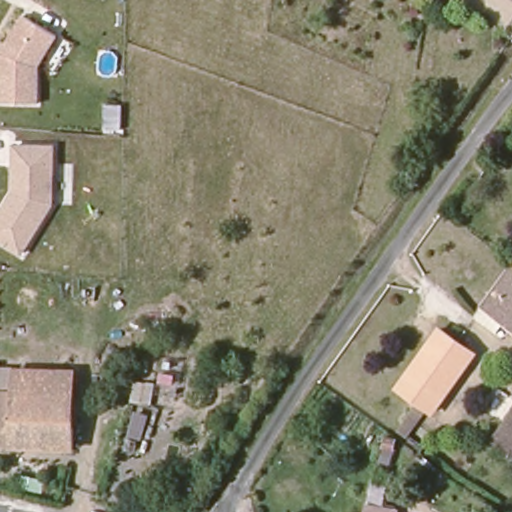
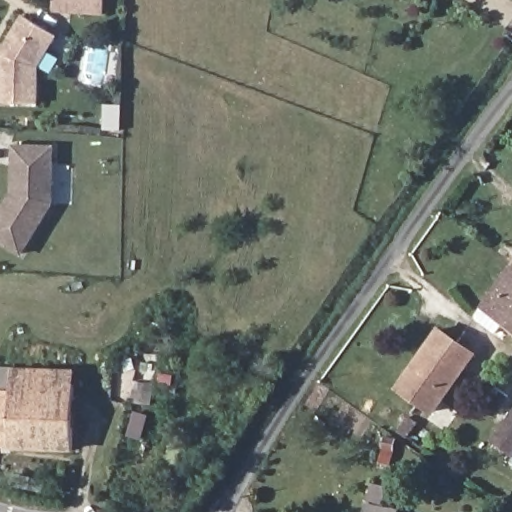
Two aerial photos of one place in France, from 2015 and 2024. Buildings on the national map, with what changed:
new [(55,12),(56,0),(107,0),(105,16),(55,12)]
unchanged [(0,50),(21,17),(58,37),(39,67),(37,103),(0,103),(0,50)]
unchanged [(21,257),(0,244),(0,211),(11,194),(13,144),(55,146),(54,207),(21,257)]
unchanged [(506,261),(512,252),(512,265),(506,261)]
unchanged [(512,265),(512,328),(477,304),(506,261),(512,265)]
unchanged [(473,352),(435,412),(397,389),(435,329),(473,352)]
unchanged [(0,445),(0,365),(76,368),(77,448),(0,445)]
unchanged [(437,419),(423,438),(413,431),(425,414),(437,419)]
unchanged [(512,418),(512,456),(511,458),(492,442),(512,418)]
unchanged [(390,489),(386,511),(389,512),(370,512),(375,487),(390,489)]

